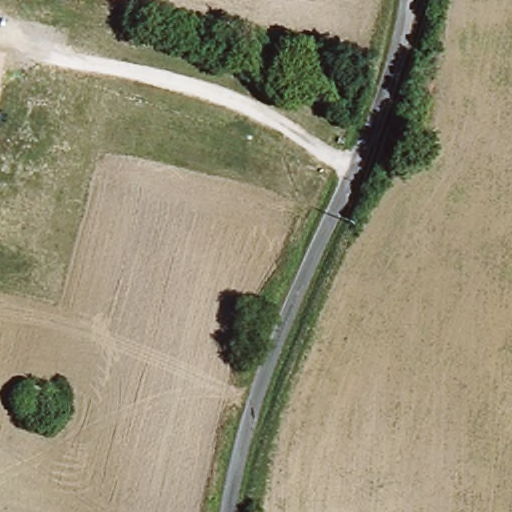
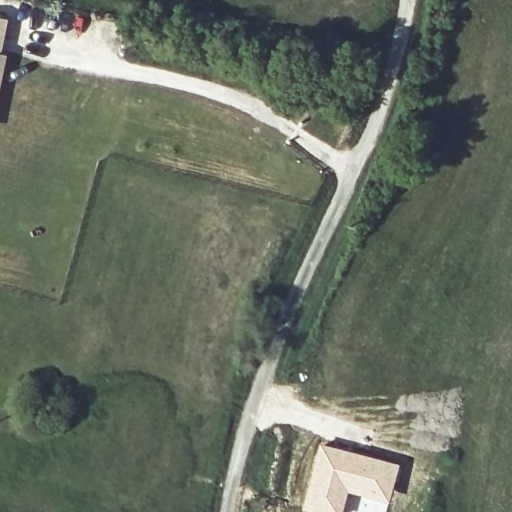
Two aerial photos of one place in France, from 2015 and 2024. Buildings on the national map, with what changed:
unchanged [(11,53),(0,107),(0,51),(11,53)]
unchanged [(47,393),(47,411),(21,410),(22,392),(47,393)]
new [(321,442),(401,463),(388,504),(350,495),(346,512),(322,512),(324,504),(306,499),(321,442)]

